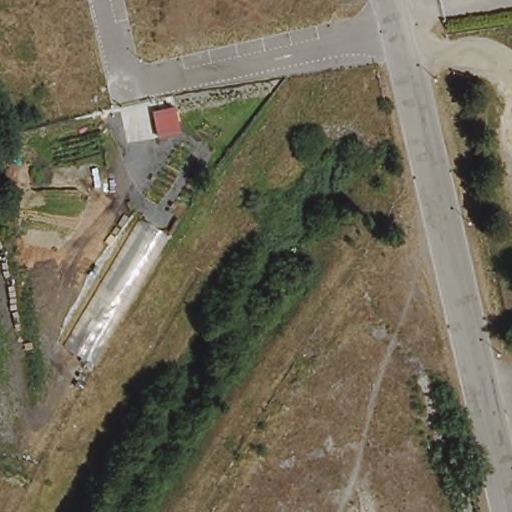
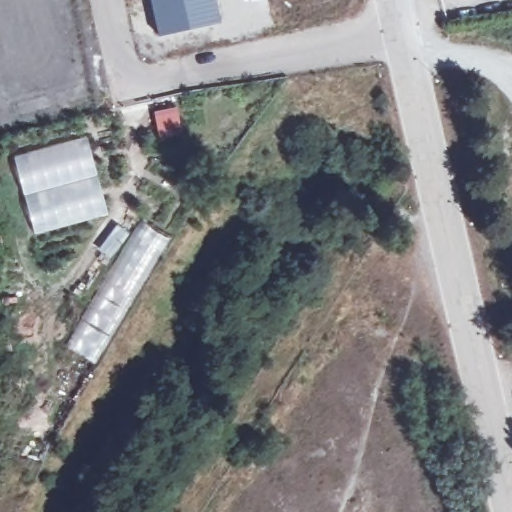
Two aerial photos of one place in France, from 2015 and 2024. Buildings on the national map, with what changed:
new [(158,35),(150,0),(215,0),(220,21),(158,35)]
new [(178,106),(183,134),(158,139),(153,110),(178,106)]
new [(13,157),(86,138),(108,215),(34,234),(13,157)]

